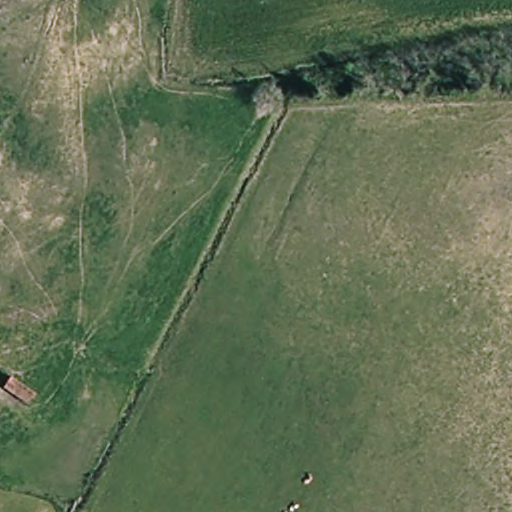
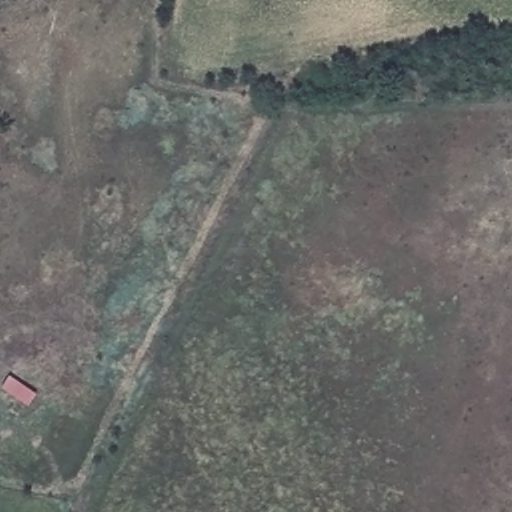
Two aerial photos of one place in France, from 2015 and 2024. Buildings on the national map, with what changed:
unchanged [(8,373),(35,391),(27,408),(0,389),(0,387),(8,373)]

